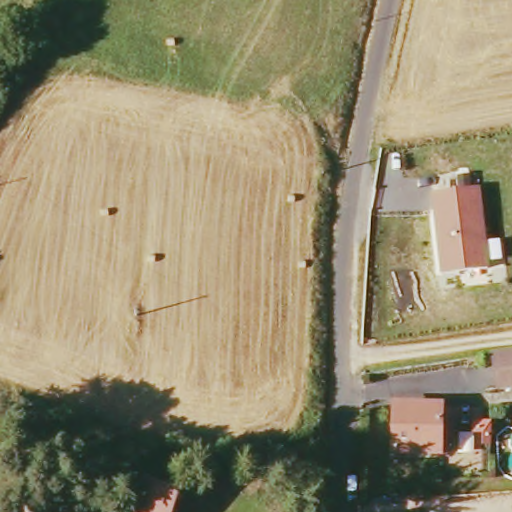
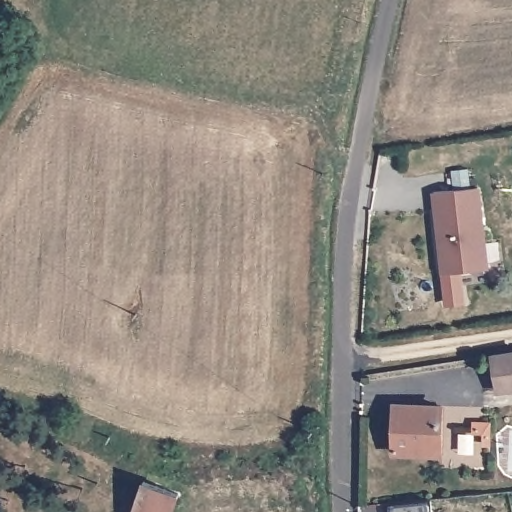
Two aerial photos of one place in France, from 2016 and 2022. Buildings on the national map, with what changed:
unchanged [(488,268),(440,273),(432,192),(479,187),(488,268)]
unchanged [(494,397),(490,355),(512,351),(512,393),(494,397)]
unchanged [(435,457),(390,457),(390,410),(435,410),(435,457)]
unchanged [(137,495),(145,470),(189,487),(179,509),(177,512),(129,512),(137,495)]

